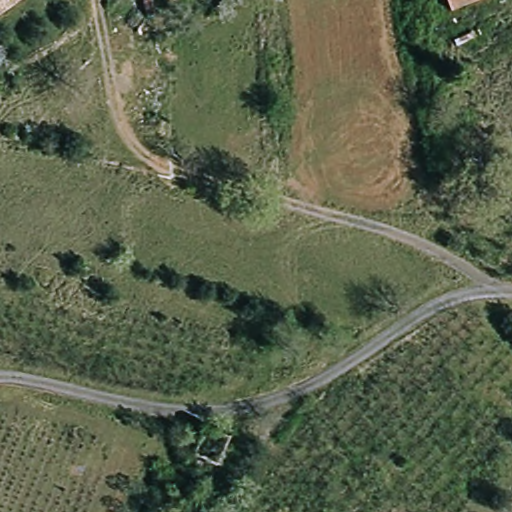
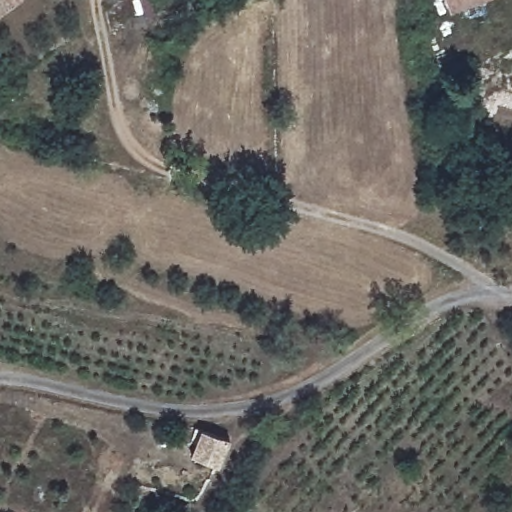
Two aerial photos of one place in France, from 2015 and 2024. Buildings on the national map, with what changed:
unchanged [(493,0),(452,15),(447,0),(493,0)]

